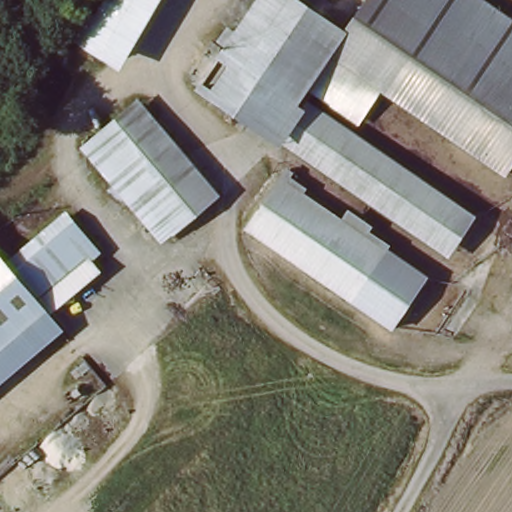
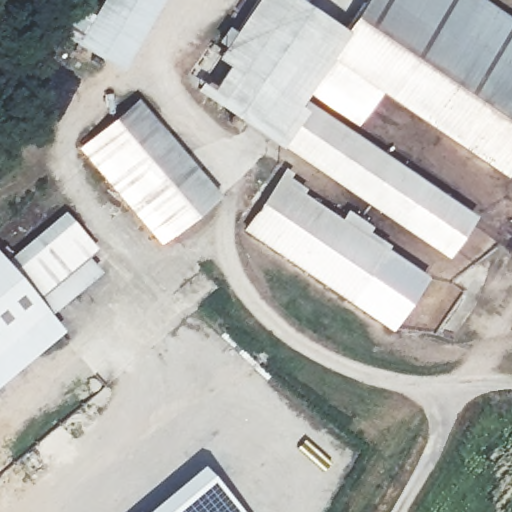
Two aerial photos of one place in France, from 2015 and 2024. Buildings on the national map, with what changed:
unchanged [(120,63),(104,54),(90,45),(115,0),(154,0),(120,63)]
unchanged [(308,95),(278,145),(199,96),(258,0),(284,0),(344,37),(308,95)]
unchanged [(512,20),(512,160),(505,172),(377,94),(358,126),(308,95),(344,37),(366,0),(480,0),(512,20)]
unchanged [(216,200),(169,239),(87,142),(135,103),(216,200)]
unchanged [(471,221),(458,246),(289,141),(305,119),(471,221)]
unchanged [(282,170),(309,186),(304,194),(342,219),(349,209),(375,225),(371,235),(385,247),(349,305),(241,233),(282,170)]
unchanged [(67,219),(86,241),(28,292),(8,269),(67,219)]
unchanged [(28,292),(86,241),(98,254),(87,263),(98,275),(51,313),(68,333),(0,390),(0,343),(41,308),(28,292)]
unchanged [(438,278),(401,335),(349,305),(385,247),(438,278)]
unchanged [(8,269),(28,292),(41,308),(0,343),(0,260),(8,269)]
new [(200,461),(243,512),(138,512),(140,511),(200,461)]

